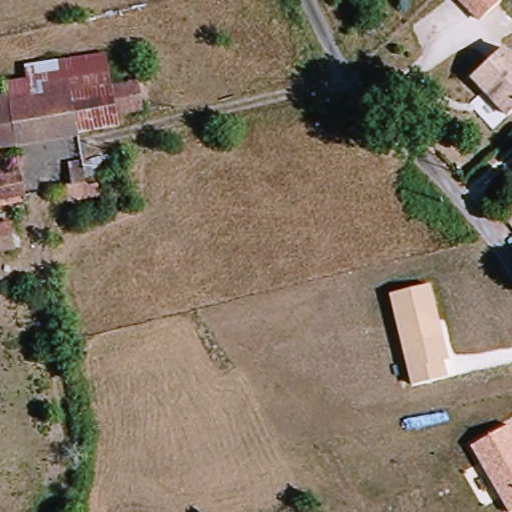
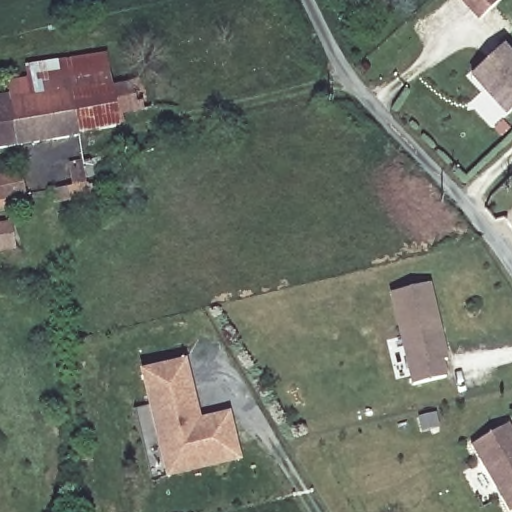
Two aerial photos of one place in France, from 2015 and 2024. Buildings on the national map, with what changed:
unchanged [(480,19),(461,0),(498,0),(480,19)]
unchanged [(473,81),(505,52),(512,60),(512,117),(508,120),(473,81)]
unchanged [(3,85),(24,83),(25,70),(106,56),(112,92),(90,96),(70,99),(7,110),(5,96),(3,85)]
unchanged [(75,138),(70,99),(90,96),(112,92),(157,83),(163,108),(119,118),(120,127),(92,135),(75,138)]
unchanged [(5,96),(7,110),(70,99),(75,138),(50,144),(0,152),(0,97),(5,96)]
unchanged [(79,154),(81,175),(52,180),(50,164),(79,154)]
unchanged [(20,175),(25,199),(0,206),(0,179),(20,175)]
unchanged [(10,226),(14,255),(0,257),(0,227),(10,226)]
unchanged [(448,360),(443,361),(447,377),(411,386),(390,295),(430,284),(448,360)]
new [(140,370),(185,360),(201,419),(230,413),(241,461),(167,479),(140,370)]
unchanged [(512,512),(508,512),(471,446),(509,425),(512,431),(512,512)]

